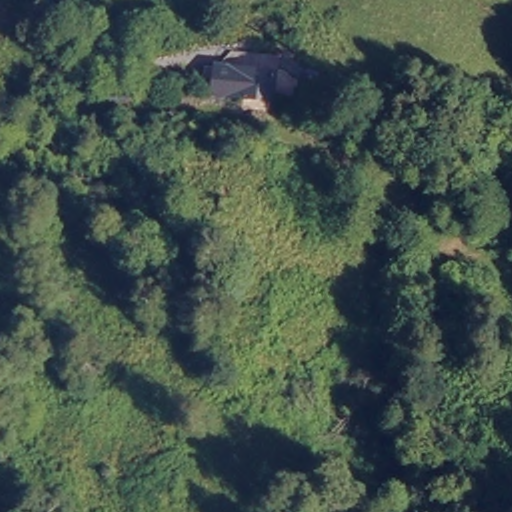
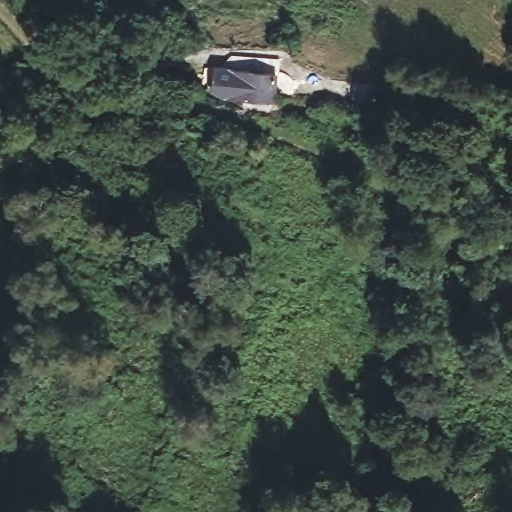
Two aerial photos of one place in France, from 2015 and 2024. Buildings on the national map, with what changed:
unchanged [(234,106),(234,103),(237,71),(275,75),(273,108),(273,110),(234,106)]

